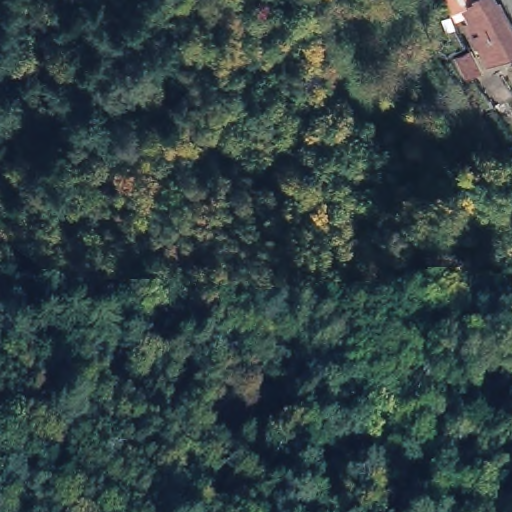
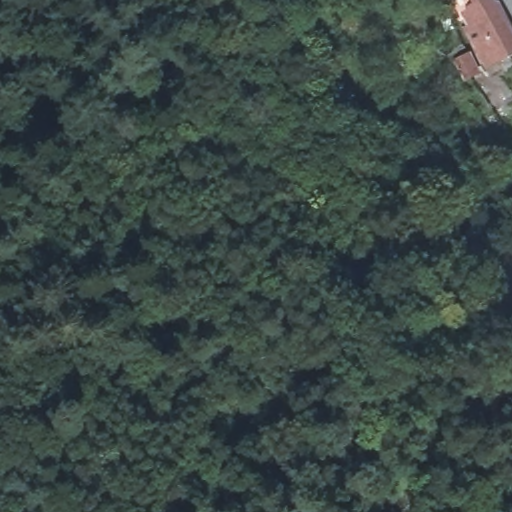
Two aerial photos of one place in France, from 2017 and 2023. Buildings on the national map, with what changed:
unchanged [(512,51),(482,66),(455,12),(445,17),(439,2),(443,0),(489,0),(502,16),(512,39),(512,51)]
unchanged [(465,51),(477,72),(460,79),(450,59),(465,51)]

